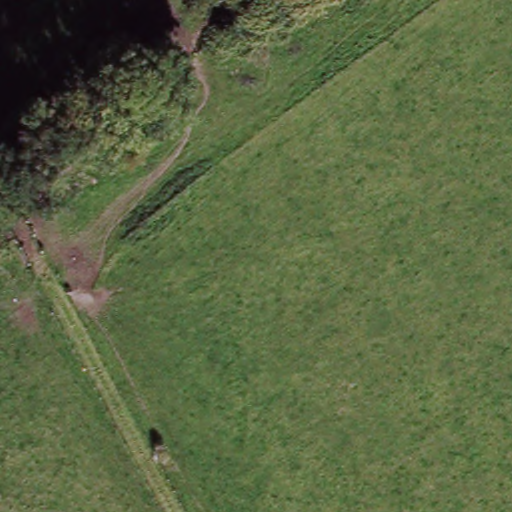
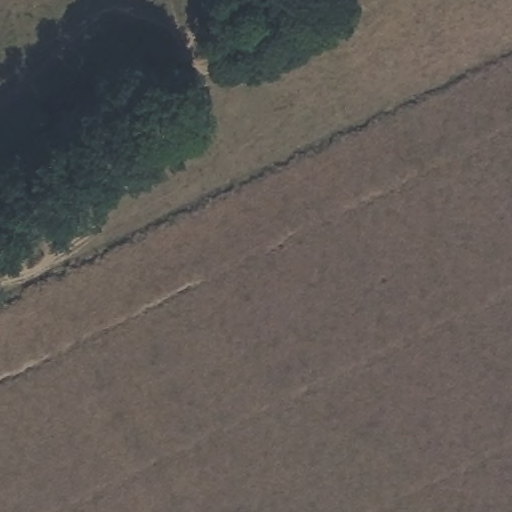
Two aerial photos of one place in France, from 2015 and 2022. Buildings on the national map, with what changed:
unchanged [(55,63),(115,10),(144,45),(86,99),(55,63)]
unchanged [(0,122),(38,90),(51,77),(76,104),(61,118),(11,162),(0,146),(0,122)]

